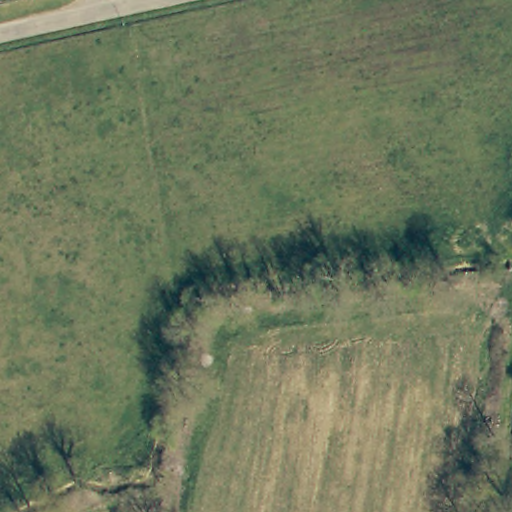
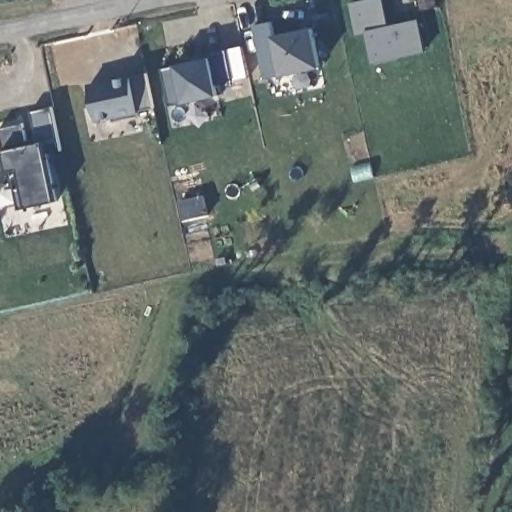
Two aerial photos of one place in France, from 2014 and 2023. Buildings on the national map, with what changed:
new [(391,25),(420,19),(427,51),(375,64),(367,34),(358,35),(350,4),(365,0),(385,0),(391,25)]
new [(277,35),(315,26),(322,67),(283,76),(265,80),(253,26),(272,22),(277,35)]
new [(176,68),(175,65),(207,58),(206,55),(227,50),(234,80),(216,85),(220,96),(184,103),(170,105),(162,70),(176,68)]
new [(154,107),(139,111),(140,116),(114,121),(114,117),(96,122),(87,83),(130,74),(131,76),(146,73),(154,107)]
new [(61,150),(46,154),(57,201),(28,208),(18,210),(9,171),(0,173),(0,171),(0,152),(5,151),(0,134),(0,130),(22,124),(27,145),(40,143),(31,112),(52,108),(61,150)]

